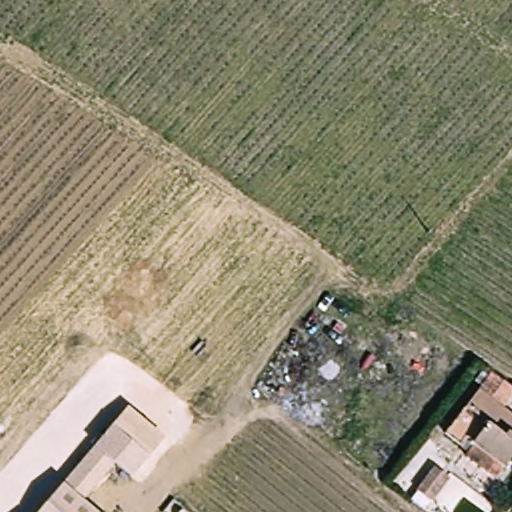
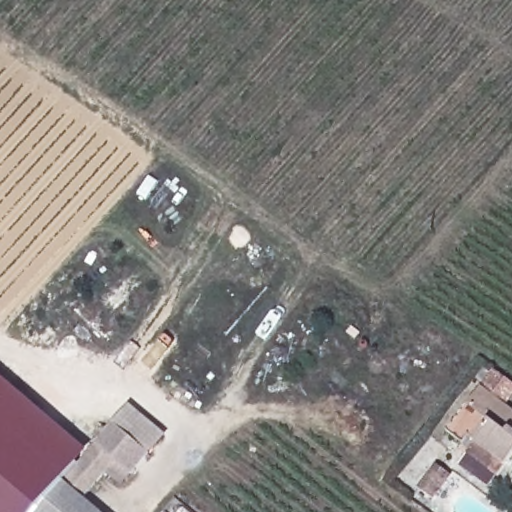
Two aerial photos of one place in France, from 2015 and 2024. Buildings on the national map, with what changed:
unchanged [(477,445),(470,440),(466,446),(464,448),(447,436),(449,435),(492,372),(512,386),(512,396),(504,408),(512,414),(512,462),(504,473),(500,480),(483,468),(468,457),(473,451),(477,445)]
new [(65,480),(68,481),(42,512),(0,512),(0,376),(87,451),(65,480)]
unchanged [(68,481),(65,480),(128,405),(165,435),(149,454),(132,475),(112,460),(87,497),(68,481)]
unchanged [(428,466),(443,476),(427,500),(412,490),(428,466)]
unchanged [(68,481),(104,512),(42,512),(68,481)]

